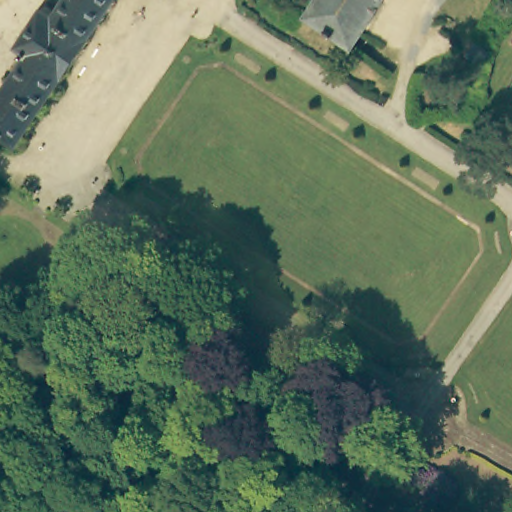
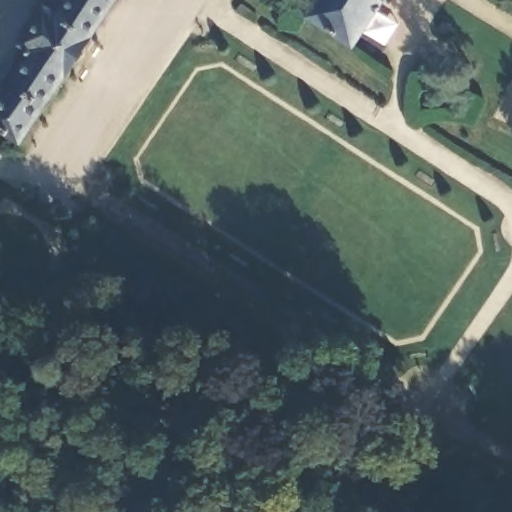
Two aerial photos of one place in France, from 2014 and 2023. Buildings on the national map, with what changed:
unchanged [(0,123),(0,98),(32,48),(24,43),(47,3),(58,9),(64,0),(116,0),(26,139),(0,123)]
unchanged [(318,0),(384,0),(354,46),(307,17),(318,0)]

